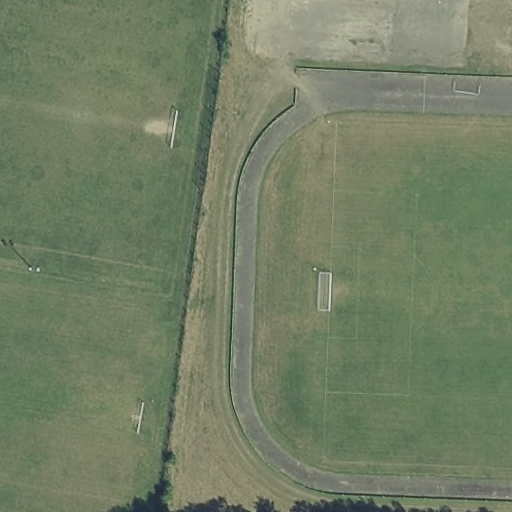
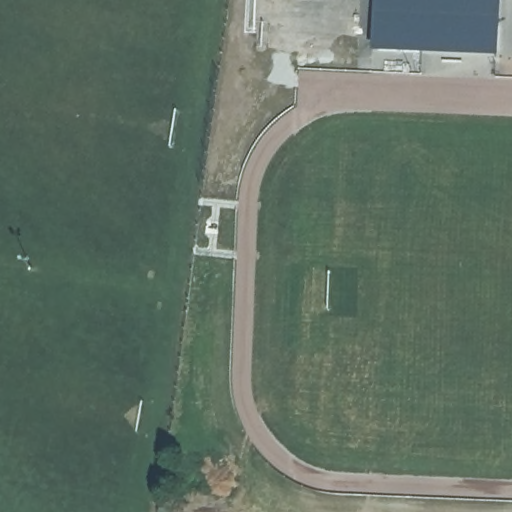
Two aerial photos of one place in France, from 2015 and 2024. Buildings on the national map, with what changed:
new [(376,0),(501,0),(498,57),(374,52),(376,0)]

